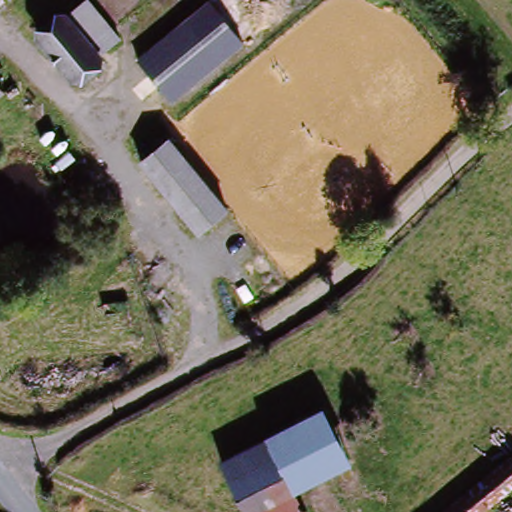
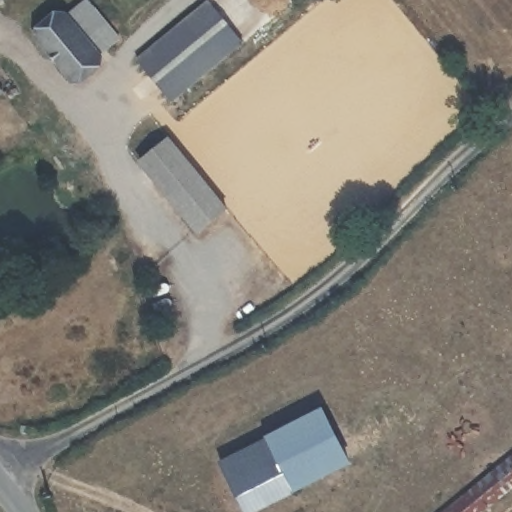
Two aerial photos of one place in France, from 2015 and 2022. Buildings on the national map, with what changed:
unchanged [(210,0),(244,44),(170,101),(136,59),(210,0)]
unchanged [(91,4),(123,44),(104,60),(71,20),(91,4)]
unchanged [(75,83),(43,43),(71,20),(104,60),(75,83)]
unchanged [(12,84),(0,93),(0,69),(12,84)]
unchanged [(200,235),(141,164),(169,141),(228,211),(200,235)]
unchanged [(322,406),(354,461),(298,497),(308,512),(244,512),(218,463),(322,406)]
unchanged [(512,488),(483,512),(450,512),(512,461),(512,488)]

